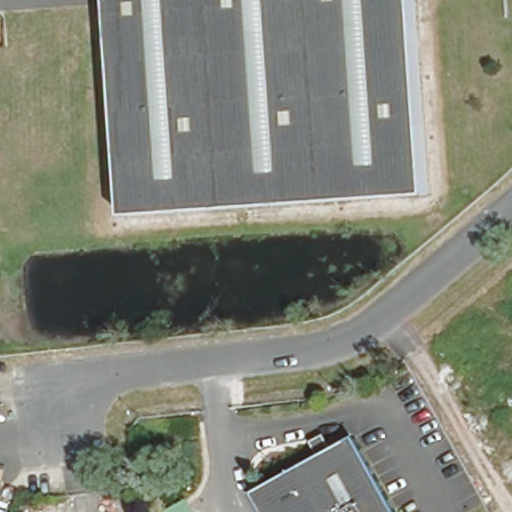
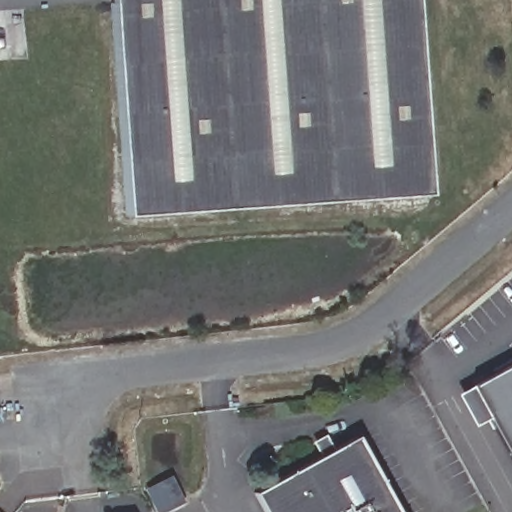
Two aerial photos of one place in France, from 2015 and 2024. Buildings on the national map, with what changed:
unchanged [(119,213),(106,0),(408,0),(420,194),(119,213)]
new [(472,386),(512,364),(512,460),(489,418),(473,426),(456,394),(472,386)]
unchanged [(347,441),(385,512),(261,512),(251,493),(347,441)]
new [(166,512),(156,512),(145,489),(171,476),(185,503),(166,512)]

